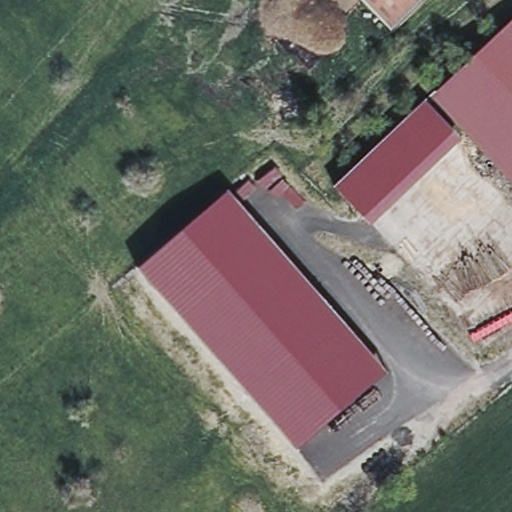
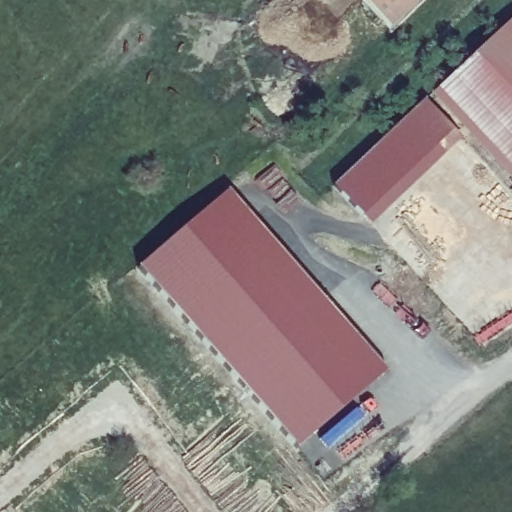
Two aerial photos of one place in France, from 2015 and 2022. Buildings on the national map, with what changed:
unchanged [(364,0),(419,0),(391,27),(364,0)]
unchanged [(432,98),(512,21),(512,183),(432,98)]
unchanged [(372,224),(336,185),(426,100),(462,142),(372,224)]
unchanged [(387,372),(296,449),(140,268),(230,191),(387,372)]

